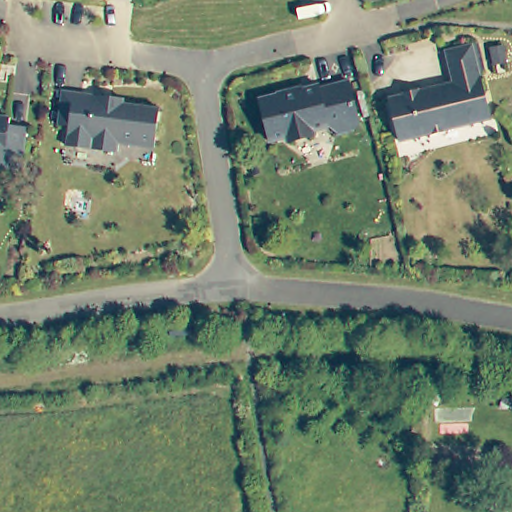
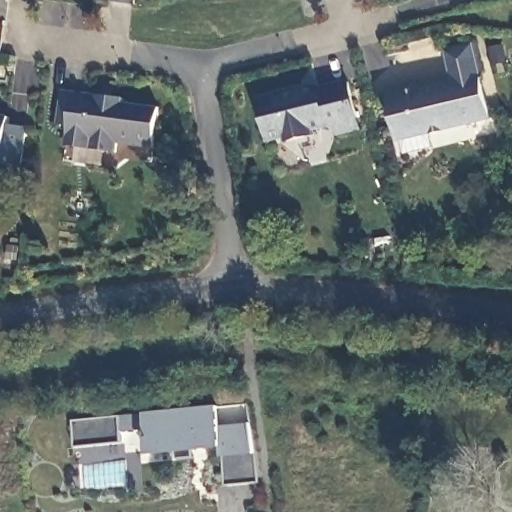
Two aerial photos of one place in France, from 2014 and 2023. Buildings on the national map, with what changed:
unchanged [(490,117),(400,140),(389,96),(452,81),(444,50),(471,44),(490,117)]
unchanged [(356,118),(316,129),(316,134),(290,141),(286,135),(269,139),(259,98),(298,85),(301,88),(318,84),(322,86),(346,81),(356,118)]
unchanged [(90,94),(92,96),(92,106),(109,106),(110,96),(124,97),(124,104),(159,108),(155,148),(118,144),(117,151),(67,145),(67,125),(61,125),(59,122),(62,91),(90,94)]
unchanged [(11,115),(11,123),(28,124),(24,161),(6,161),(4,166),(0,166),(0,114),(11,115)]
new [(118,416),(143,413),(216,406),(218,425),(247,423),(256,482),(223,484),(220,457),(219,449),(148,455),(145,431),(121,434),(121,442),(75,447),(72,420),(118,416)]

